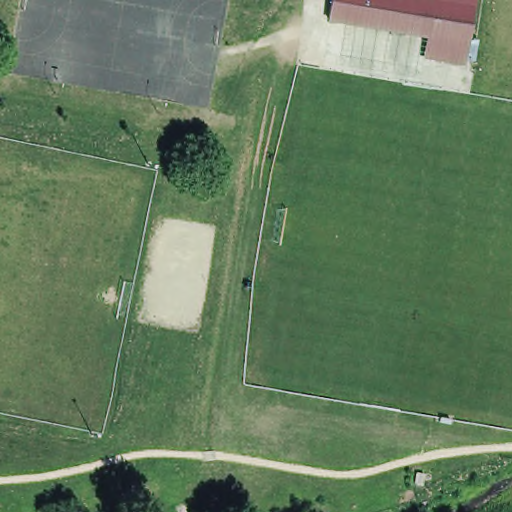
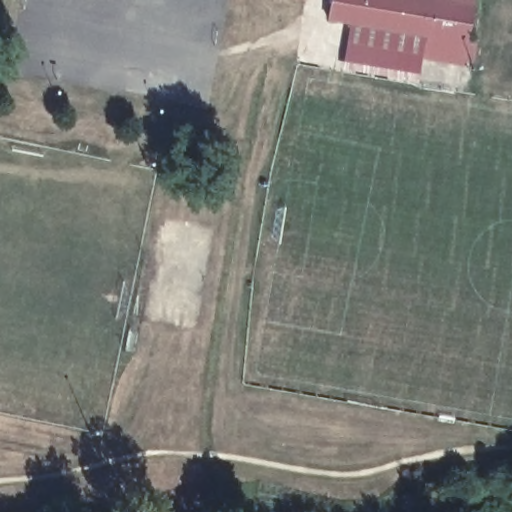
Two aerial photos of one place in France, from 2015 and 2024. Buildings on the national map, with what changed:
unchanged [(424,52),(429,29),(330,15),(333,0),(434,0),(472,0),(472,6),(464,57),(424,52)]

